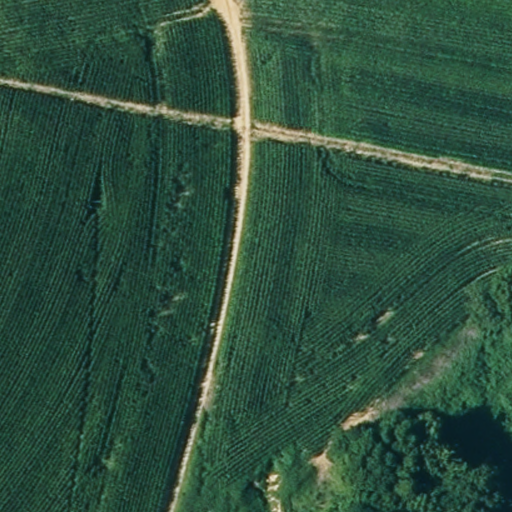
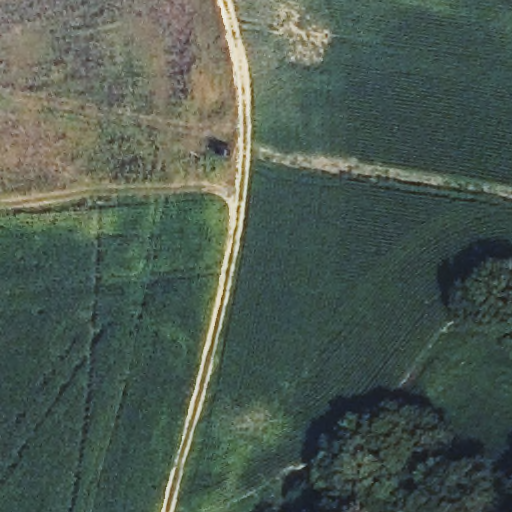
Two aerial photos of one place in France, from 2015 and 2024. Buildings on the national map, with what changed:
[]

